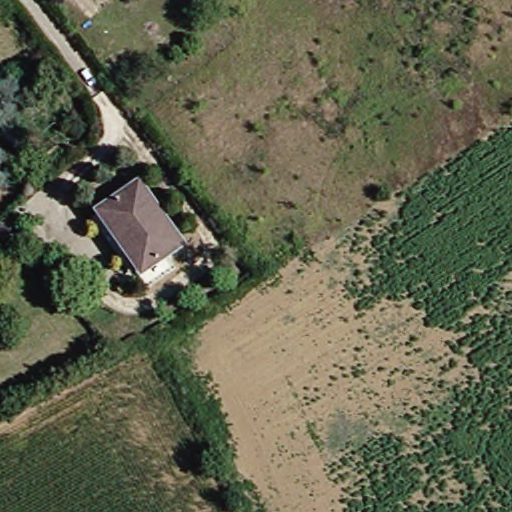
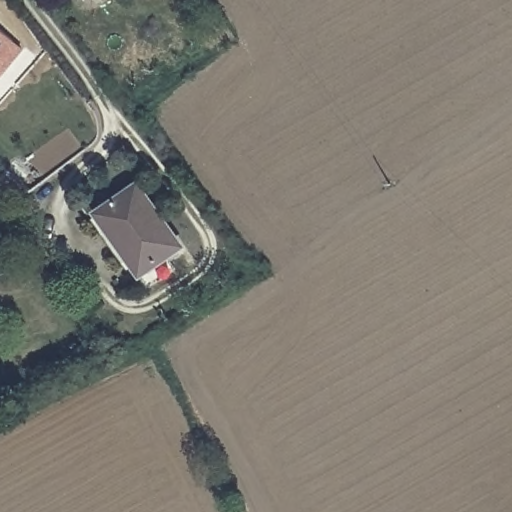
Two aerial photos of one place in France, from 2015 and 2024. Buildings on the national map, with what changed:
new [(0,80),(0,29),(25,50),(0,80)]
unchanged [(185,241),(147,268),(105,210),(143,182),(185,241)]

